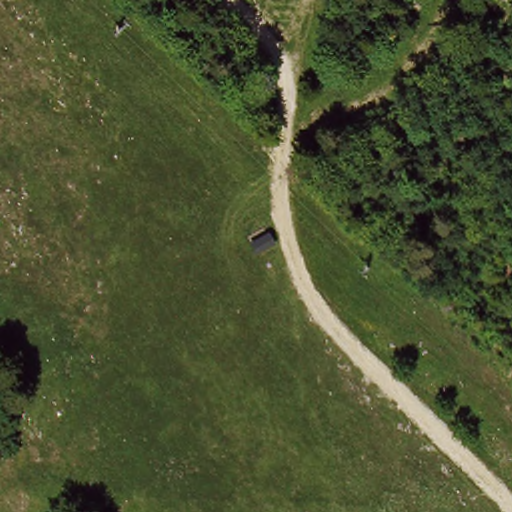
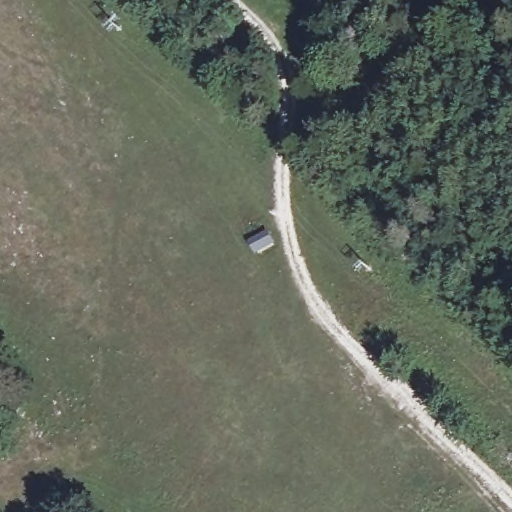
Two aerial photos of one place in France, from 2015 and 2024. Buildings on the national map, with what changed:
unchanged [(269,229),(278,244),(259,255),(250,239),(269,229)]

